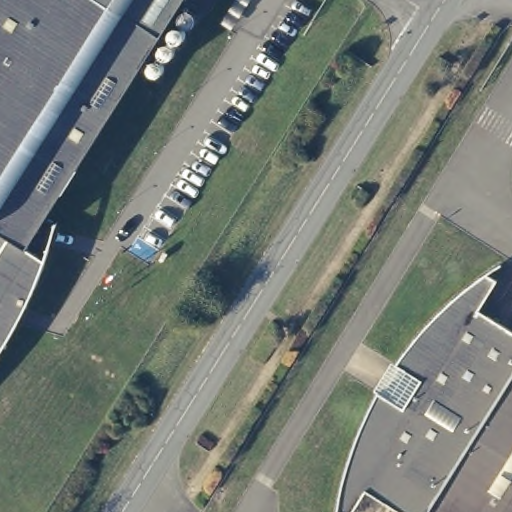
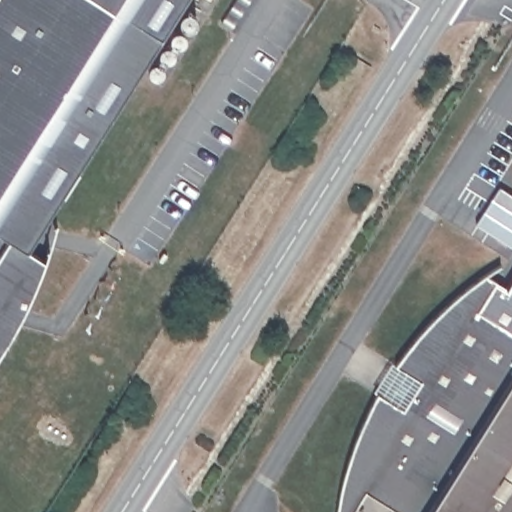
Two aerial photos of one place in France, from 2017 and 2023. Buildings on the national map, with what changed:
unchanged [(22,253),(40,265),(40,267),(12,330),(0,349),(0,0),(183,0),(157,40),(22,253)]
unchanged [(402,359),(416,341),(435,322),(455,304),(475,287),(481,284),(492,291),(473,320),(512,344),(512,512),(378,512),(361,501),(354,512),(334,512),(336,499),(340,482),(345,468),(355,439),(358,431),(366,415),(373,402),(382,408),(400,380),(390,375),(402,359)]

